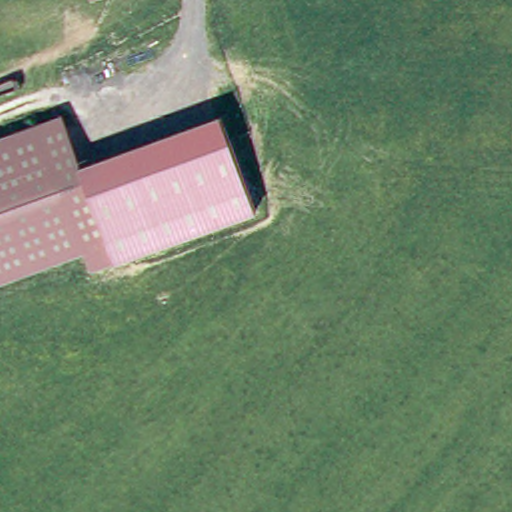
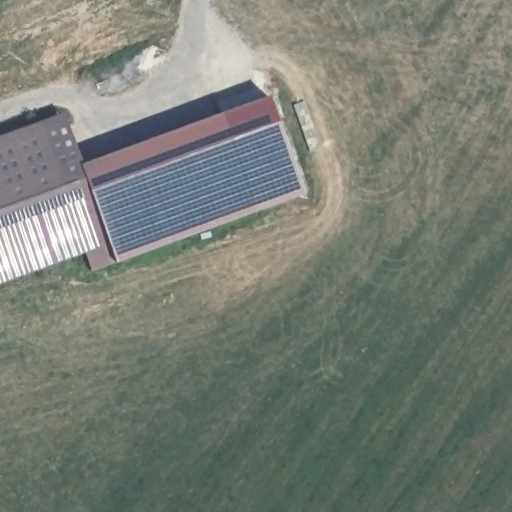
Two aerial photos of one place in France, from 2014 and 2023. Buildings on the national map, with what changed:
new [(270,100),(305,195),(261,210),(226,115),(270,100)]
unchanged [(119,262),(95,271),(89,251),(42,124),(66,115),(85,166),(84,167),(119,262)]
unchanged [(226,115),(261,210),(119,262),(84,167),(85,166),(226,115)]
unchanged [(89,251),(0,284),(0,139),(42,124),(89,251)]

